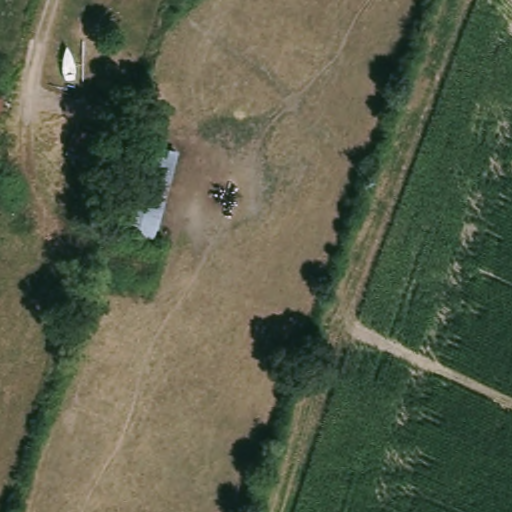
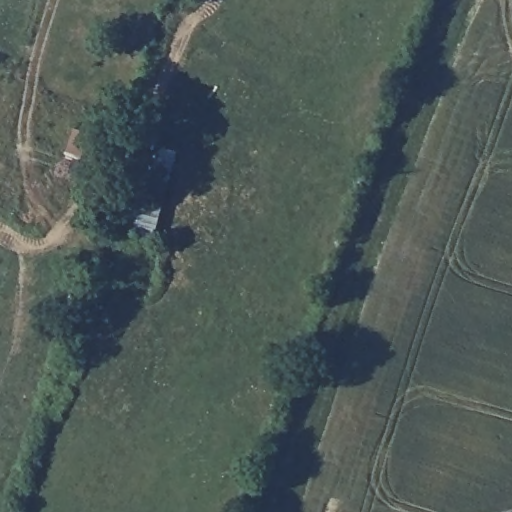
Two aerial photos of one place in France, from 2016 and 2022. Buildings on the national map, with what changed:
unchanged [(4,124),(0,122),(0,90),(12,95),(4,124)]
unchanged [(115,136),(105,184),(64,172),(79,123),(115,136)]
unchanged [(184,156),(160,240),(129,230),(154,147),(184,156)]

